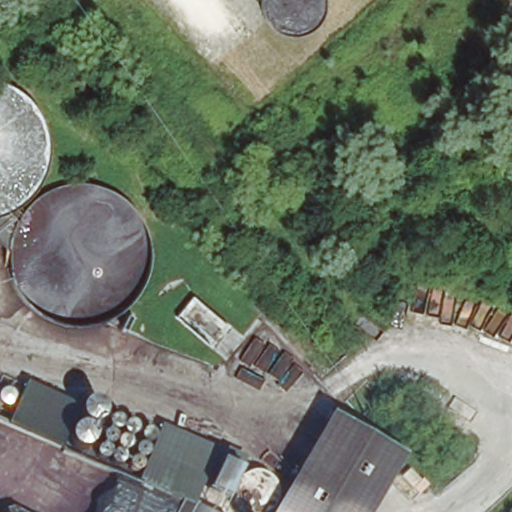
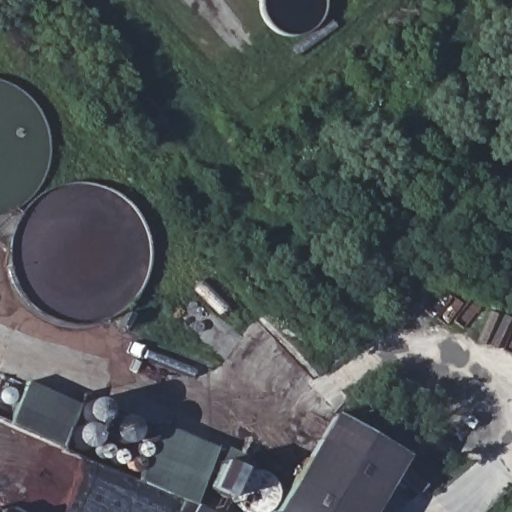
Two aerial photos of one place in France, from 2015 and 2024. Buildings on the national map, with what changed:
unchanged [(26,381),(76,405),(83,389),(177,433),(215,450),(221,462),(240,471),(249,470),(262,471),(270,476),(280,491),(279,500),(296,512),(123,512),(135,484),(5,430),(26,381)]
unchanged [(331,417),(405,457),(371,512),(296,512),(281,502),(331,417)]
unchanged [(22,512),(3,512),(11,507),(22,512)]

